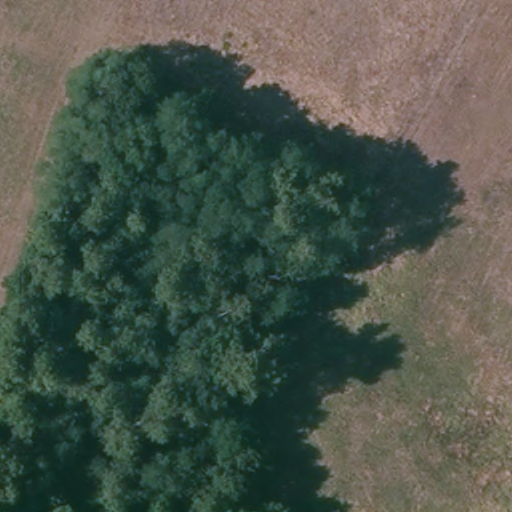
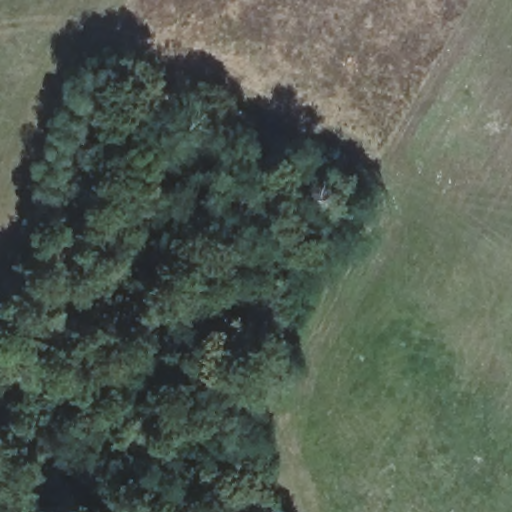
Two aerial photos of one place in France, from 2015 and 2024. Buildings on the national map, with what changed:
[]

